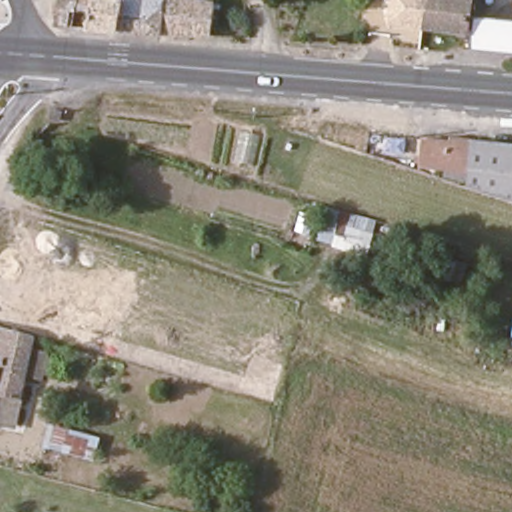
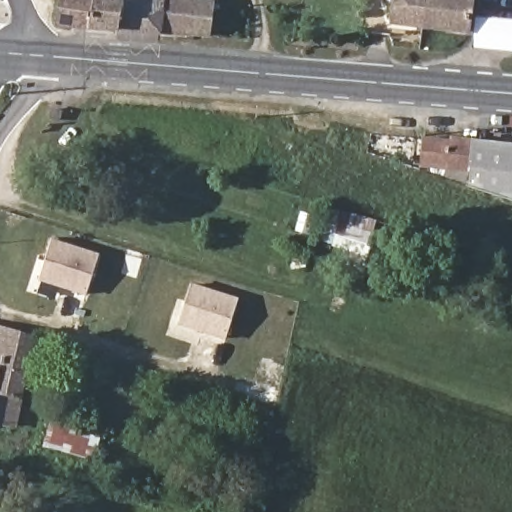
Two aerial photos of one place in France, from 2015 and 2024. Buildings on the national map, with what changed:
unchanged [(54,26),(56,0),(117,0),(110,32),(54,26)]
unchanged [(117,0),(226,0),(219,37),(202,37),(110,32),(117,0)]
unchanged [(392,24),(396,0),(423,0),(421,27),(392,24)]
unchanged [(464,32),(421,27),(423,0),(469,0),(464,32)]
unchanged [(512,19),(512,49),(474,44),(479,14),(512,19)]
unchanged [(61,111),(60,121),(49,119),(49,108),(61,111)]
unchanged [(476,134),(474,169),(452,166),(424,164),(427,139),(454,140),(455,132),(476,134)]
unchanged [(452,166),(474,169),(476,134),(512,136),(512,197),(450,177),(452,166)]
unchanged [(368,223),(359,246),(324,237),(330,211),(368,223)]
new [(50,239),(98,254),(86,293),(38,279),(50,239)]
new [(189,284),(238,298),(226,338),(178,324),(189,284)]
unchanged [(18,432),(0,428),(0,325),(35,335),(18,432)]
new [(44,446),(49,423),(101,437),(95,460),(44,446)]

